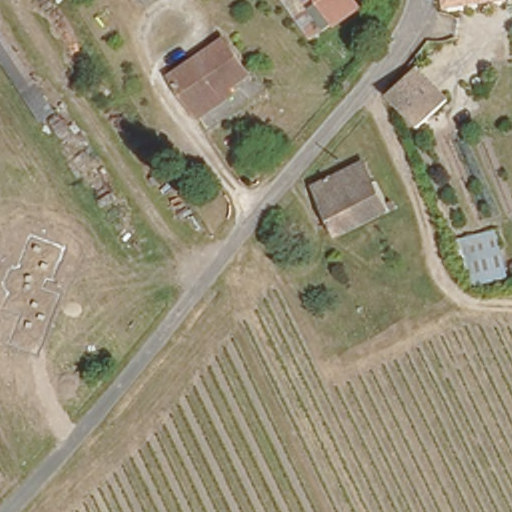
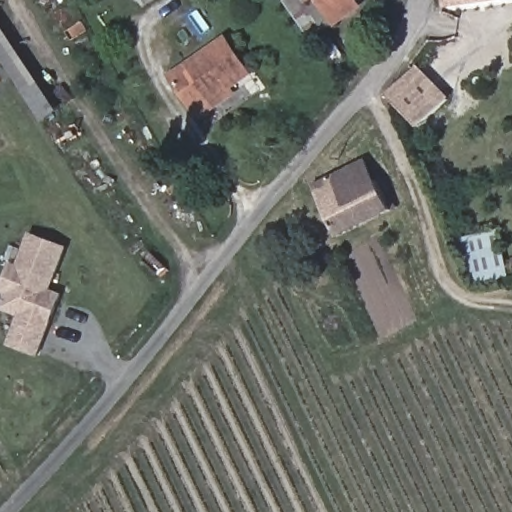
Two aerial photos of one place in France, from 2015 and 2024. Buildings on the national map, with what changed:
unchanged [(141,2),(140,0),(144,0),(141,2)]
unchanged [(281,0),(303,0),(302,0),(322,28),(308,37),(281,0)]
unchanged [(302,0),(303,0),(353,0),(355,4),(322,28),(302,0)]
unchanged [(442,8),(441,0),(509,0),(442,8)]
unchanged [(41,121),(0,59),(0,24),(58,110),(41,121)]
unchanged [(216,111),(201,122),(173,83),(227,45),(251,79),(232,93),(235,97),(216,111)]
unchanged [(446,104),(416,131),(386,98),(415,70),(446,104)]
unchanged [(392,211),(338,235),(315,185),(367,160),(392,211)]
new [(468,256),(463,257),(460,237),(495,231),(497,259),(505,257),(509,278),(474,285),(468,256)]
new [(38,356),(8,345),(18,317),(0,310),(6,295),(0,292),(11,261),(17,264),(29,233),(67,247),(51,289),(63,293),(38,356)]

